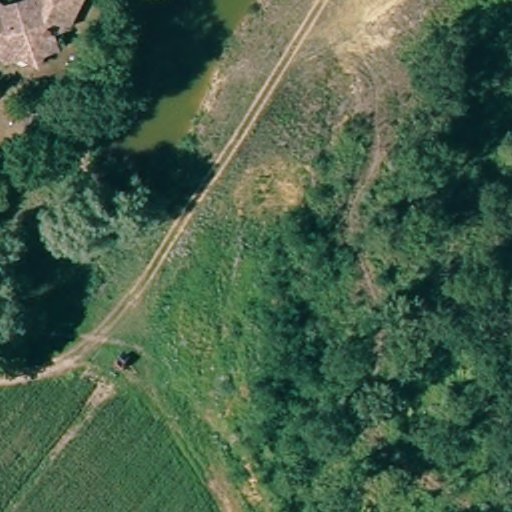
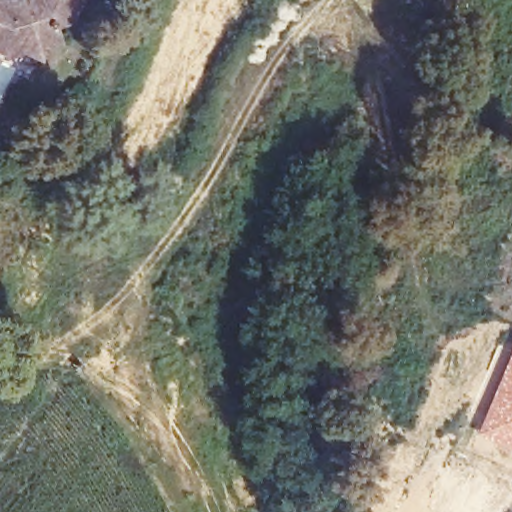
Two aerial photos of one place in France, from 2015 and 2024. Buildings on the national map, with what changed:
unchanged [(46,34),(52,50),(36,56),(32,65),(0,50),(0,9),(25,0),(76,0),(62,29),(46,34)]
new [(512,453),(475,435),(512,345),(512,453)]

